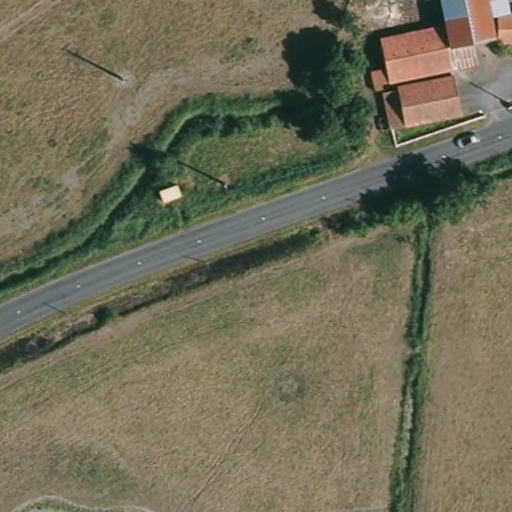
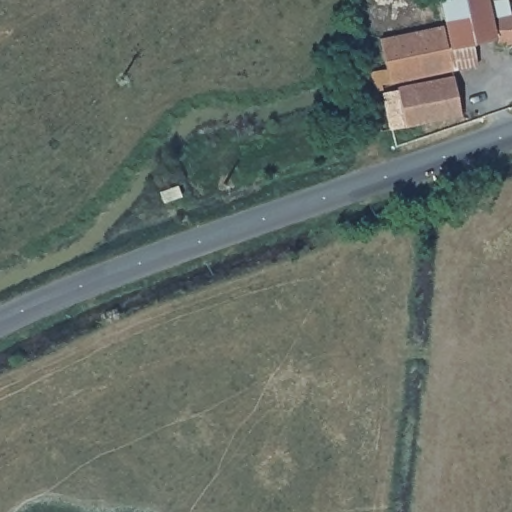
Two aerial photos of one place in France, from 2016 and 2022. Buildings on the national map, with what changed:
unchanged [(366,94),(363,70),(380,67),(377,40),(440,31),(436,0),(483,0),(487,40),(463,44),(467,71),(446,75),(447,83),(452,118),(386,128),(381,91),(366,94)]
unchanged [(512,50),(493,50),(487,8),(512,6),(512,50)]
unchanged [(151,198),(157,217),(134,225),(129,206),(151,198)]

